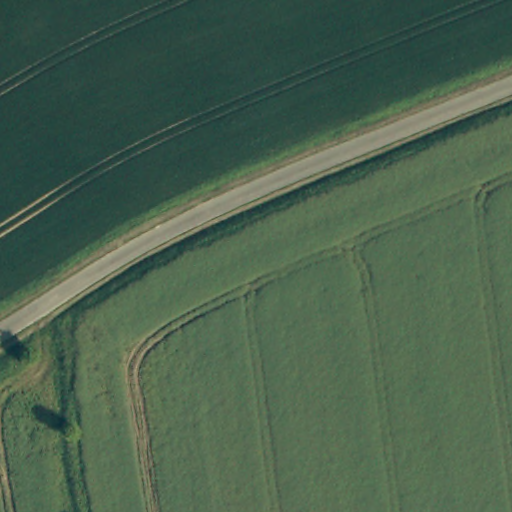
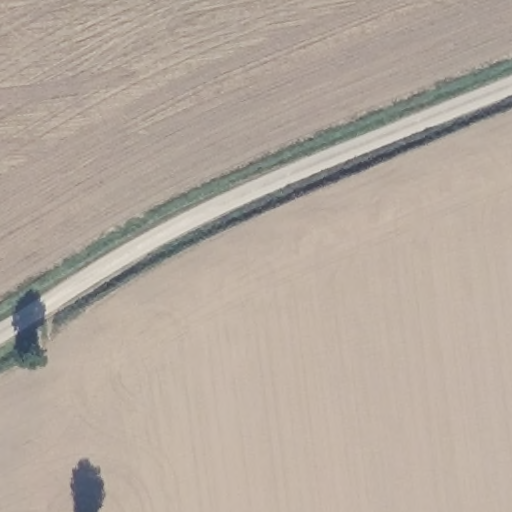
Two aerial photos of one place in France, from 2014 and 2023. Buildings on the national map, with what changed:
[]

